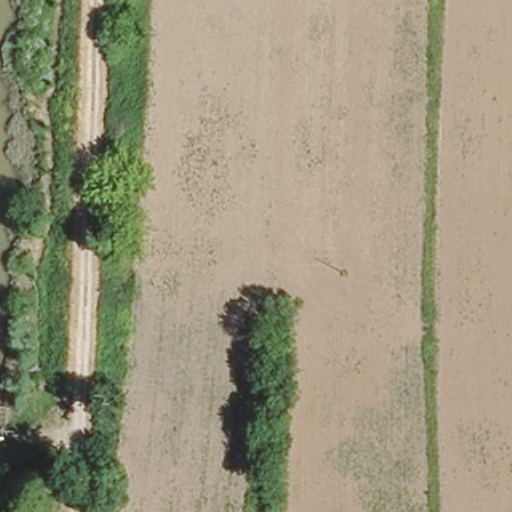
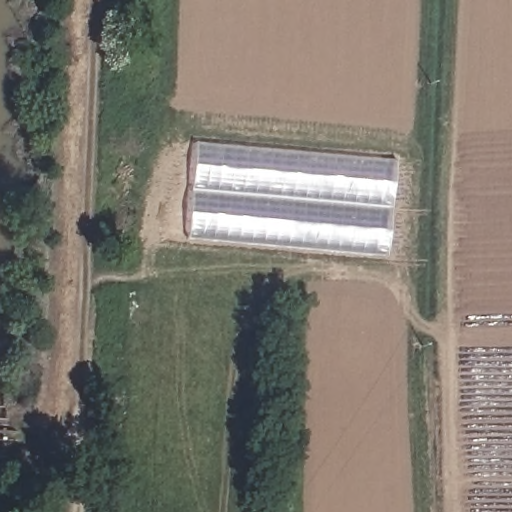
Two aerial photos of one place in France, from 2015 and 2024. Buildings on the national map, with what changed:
new [(187,239),(195,142),(396,160),(387,258),(187,239)]

